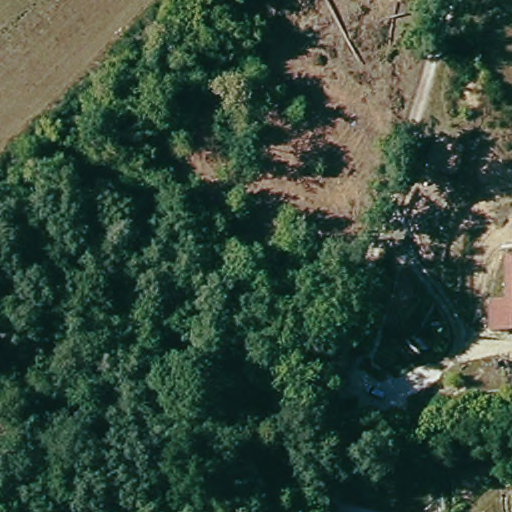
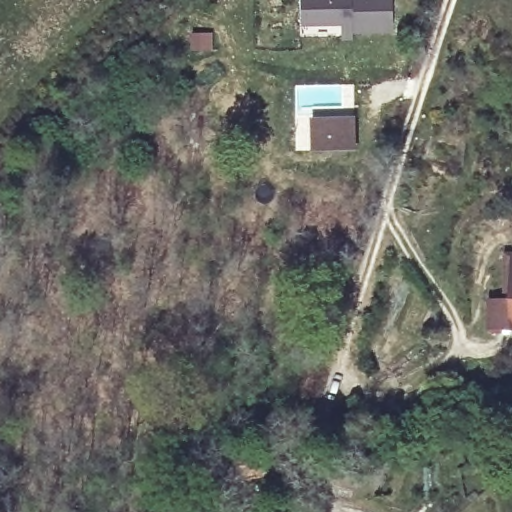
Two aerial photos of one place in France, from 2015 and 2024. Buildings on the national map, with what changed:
new [(352,31),(352,37),(342,37),(341,22),(300,24),(299,0),(392,0),(393,30),(352,31)]
new [(357,116),(358,150),(310,151),(310,117),(357,116)]
unchanged [(492,326),(492,297),(509,297),(512,297),(512,326),(492,326)]
unchanged [(229,493),(222,467),(252,458),(257,484),(229,493)]

